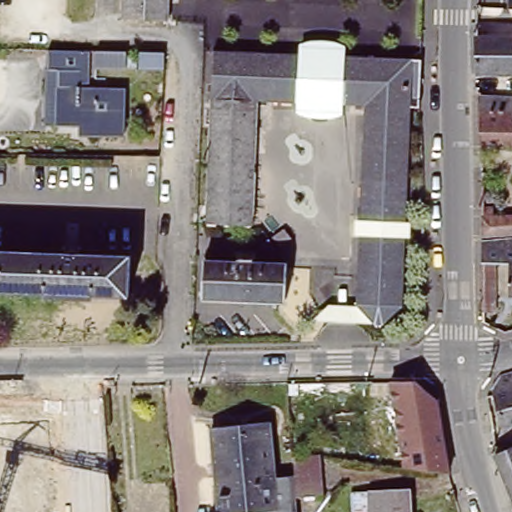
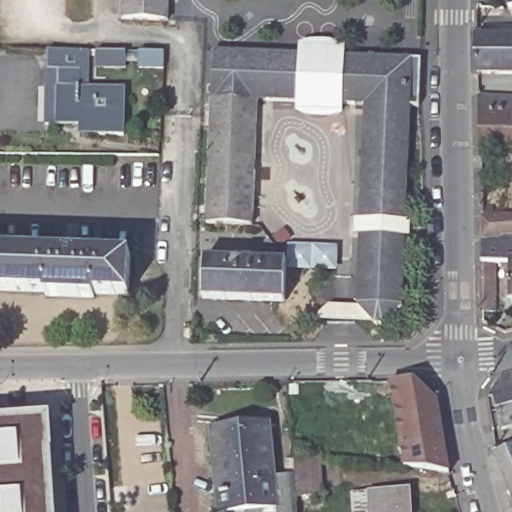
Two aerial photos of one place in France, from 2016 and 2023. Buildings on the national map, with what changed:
unchanged [(171,20),(123,17),(124,0),(171,0),(171,20)]
new [(510,0),(512,0),(512,7),(509,7),(510,0)]
unchanged [(478,73),(477,40),(477,35),(512,35),(512,73),(478,73)]
unchanged [(48,71),(48,50),(72,51),(88,52),(88,87),(125,87),(124,135),(95,135),(95,124),(55,123),(45,124),(48,71)]
unchanged [(123,52),(122,70),(95,69),(95,52),(123,52)]
unchanged [(163,53),(163,70),(138,70),(138,52),(163,53)]
unchanged [(213,52),(304,55),(302,105),(257,101),(253,223),(208,221),(211,99),(213,52)]
unchanged [(336,105),(302,105),(304,55),(338,57),(336,105)]
unchanged [(413,109),(401,305),(384,323),(374,323),(356,303),(364,106),(336,105),(338,57),(422,60),(422,62),(422,67),(421,89),(422,109),(413,109)]
unchanged [(512,92),(512,145),(480,141),(479,89),(512,92)]
unchanged [(483,231),(482,205),(493,204),(493,214),(512,212),(512,230),(483,231)]
unchanged [(508,292),(509,258),(493,257),(492,280),(498,280),(497,297),(506,297),(505,325),(483,317),(483,236),(512,235),(512,293),(508,292)]
unchanged [(93,294),(93,297),(45,296),(45,292),(0,291),(0,252),(65,254),(65,248),(80,249),(80,254),(130,255),(128,295),(93,294)]
unchanged [(204,298),(206,260),(239,261),(239,256),(253,257),(253,262),(286,263),(284,302),(204,298)]
unchanged [(503,426),(492,390),(502,373),(512,371),(512,424),(503,426)]
unchanged [(392,384),(416,383),(438,401),(450,476),(404,470),(392,384)]
new [(56,512),(0,512),(0,419),(49,416),(56,512)]
unchanged [(246,425),(246,418),(268,416),(276,493),(296,491),(298,512),(220,512),(212,427),(246,425)]
unchanged [(488,457),(508,448),(512,447),(512,512),(509,512),(485,458),(488,457)]
unchanged [(319,450),(321,489),(296,491),(293,451),(319,450)]
unchanged [(384,490),(407,490),(407,496),(408,512),(368,512),(367,492),(384,490)]

